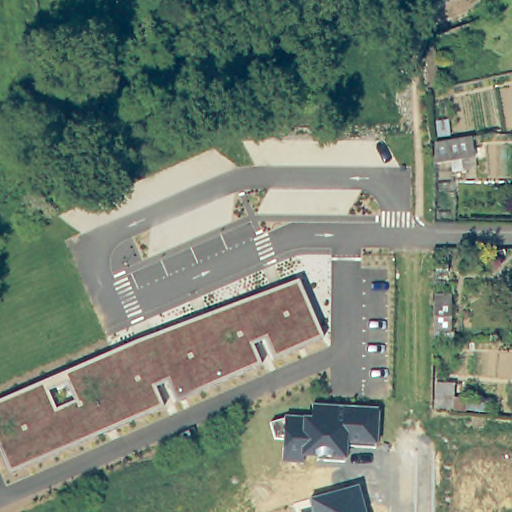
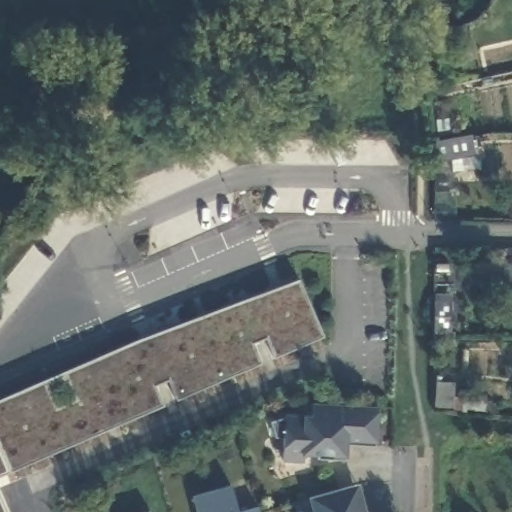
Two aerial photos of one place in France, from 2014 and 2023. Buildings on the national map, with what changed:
unchanged [(478,154),(437,160),(438,139),(474,134),(478,154)]
unchanged [(138,339),(298,281),(322,336),(274,357),(267,337),(250,344),(259,363),(177,399),(168,379),(153,385),(162,405),(9,471),(0,450),(0,401),(65,371),(138,339)]
unchanged [(434,330),(434,300),(435,292),(449,292),(449,301),(449,331),(434,330)]
unchanged [(456,409),(438,407),(439,384),(456,384),(456,409)]
unchanged [(267,423),(284,418),(285,414),(304,416),(312,417),(312,404),(378,408),(376,444),(376,448),(347,447),(346,459),(303,456),(303,463),(283,463),(284,434),(274,438),(267,423)]
new [(196,512),(192,497),(230,484),(238,512),(196,512)]
unchanged [(358,486),(366,512),(312,512),(310,499),(358,486)]
new [(259,512),(238,512),(258,506),(259,512)]
new [(146,512),(149,511),(150,512),(146,512)]

